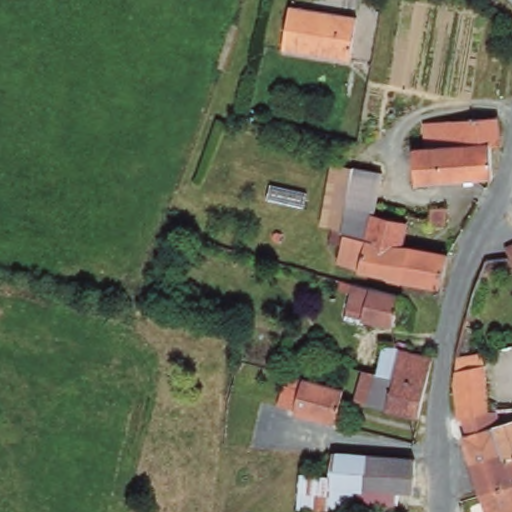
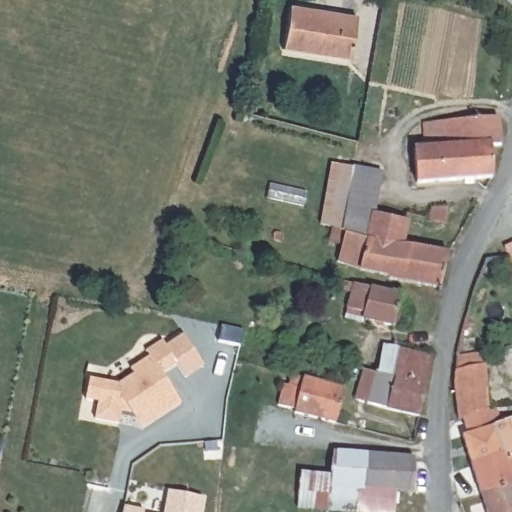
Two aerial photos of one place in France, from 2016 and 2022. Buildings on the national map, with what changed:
unchanged [(357,17),(350,60),(283,50),(289,6),(357,17)]
unchanged [(492,178),(417,184),(414,150),(424,149),(423,123),(497,117),(501,145),(490,146),(492,178)]
unchanged [(380,210),(379,214),(412,222),(407,245),(337,227),(325,225),(337,164),(358,168),(387,174),(380,210)]
unchanged [(446,226),(443,226),(429,222),(432,208),(448,208),(446,226)]
unchanged [(407,282),(394,280),(394,279),(394,278),(393,276),(364,270),(342,262),(346,246),(334,242),(337,227),(407,245),(416,247),(407,282)]
unchanged [(504,248),(512,245),(512,262),(504,248)]
unchanged [(454,255),(446,288),(407,282),(416,247),(454,255)]
unchanged [(365,320),(364,325),(344,320),(351,293),(339,290),(342,281),(354,284),(401,296),(393,327),(365,320)]
new [(119,383),(134,372),(130,368),(149,356),(145,351),(163,340),(165,346),(184,334),(204,365),(185,377),(177,363),(161,372),(182,401),(141,428),(133,415),(122,413),(120,424),(94,420),(98,403),(86,401),(89,377),(119,383)]
unchanged [(376,374),(383,345),(433,356),(416,420),(386,411),(386,408),(354,402),(362,371),(376,374)]
unchanged [(455,371),(456,357),(475,353),(484,352),(485,365),(488,411),(463,417),(458,419),(454,385),(455,371)]
unchanged [(294,413),(294,411),(278,406),(284,384),(289,386),(292,375),(344,390),(335,424),(294,413)]
unchanged [(472,464),(464,436),(468,435),(463,417),(488,411),(496,411),(501,425),(512,421),(512,455),(472,464)]
unchanged [(338,511),(297,508),(301,473),(331,476),(333,453),(359,455),(365,455),(366,455),(414,459),(412,493),(396,491),(394,512),(344,512),(338,511)]
unchanged [(472,464),(512,455),(512,477),(512,478),(512,485),(483,493),(481,493),(472,464)]
unchanged [(482,495),(481,493),(483,493),(512,485),(512,512),(487,512),(482,495)]
new [(167,491),(204,497),(202,512),(164,512),(167,491)]
new [(145,510),(145,512),(123,512),(124,506),(145,510)]

